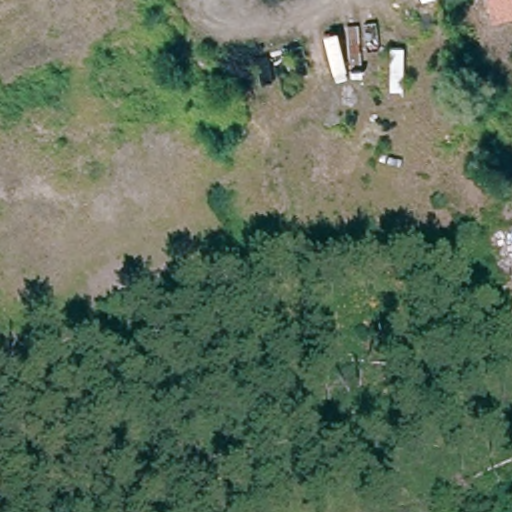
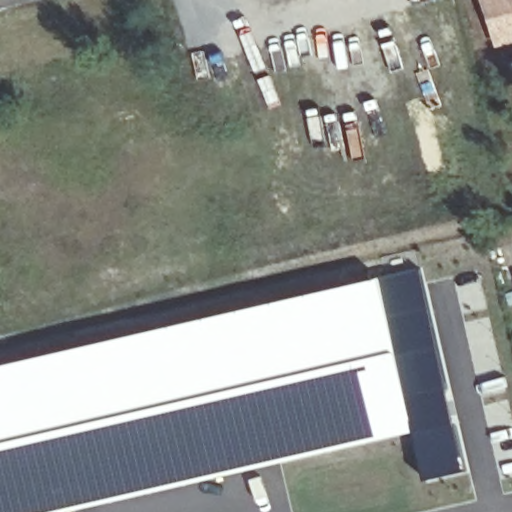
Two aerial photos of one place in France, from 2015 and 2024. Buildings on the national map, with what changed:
unchanged [(484,0),(512,0),(512,12),(488,18),(484,0)]
new [(420,267),(443,362),(426,367),(425,379),(408,382),(400,350),(383,276),(420,267)]
new [(383,276),(400,350),(193,399),(0,443),(0,365),(383,276)]
new [(400,350),(408,382),(416,433),(332,448),(136,492),(57,512),(0,512),(0,443),(193,399),(400,350)]

